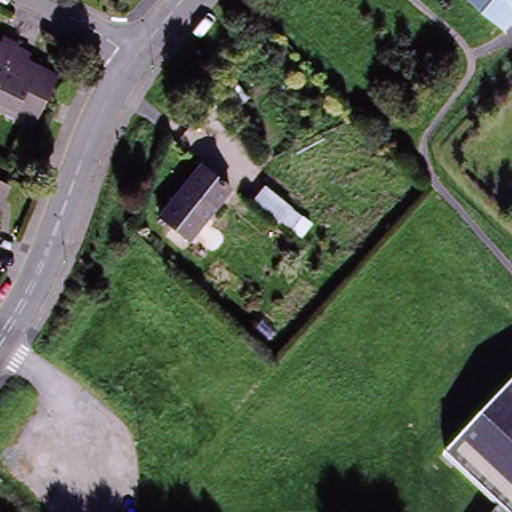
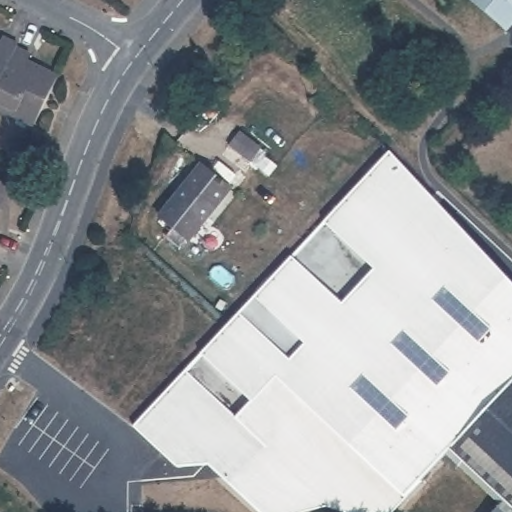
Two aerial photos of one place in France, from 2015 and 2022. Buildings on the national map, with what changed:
unchanged [(507,27),(475,0),(512,0),(512,21),(507,27)]
unchanged [(0,47),(2,42),(17,49),(16,52),(0,83),(0,47)]
unchanged [(17,117),(15,122),(0,114),(0,83),(16,52),(29,58),(23,70),(34,75),(36,73),(57,83),(35,127),(17,117)]
new [(451,448),(403,496),(389,512),(347,512),(329,506),(307,512),(258,512),(209,466),(191,465),(176,465),(135,427),(201,354),(391,155),(512,287),(512,376),(448,445),(451,448)]
unchanged [(187,240),(159,216),(201,165),(229,189),(187,240)]
unchanged [(0,191),(0,182),(4,184),(0,191)]
unchanged [(448,445),(512,376),(512,505),(448,445)]
unchanged [(495,512),(506,499),(512,505),(512,512),(495,512)]

